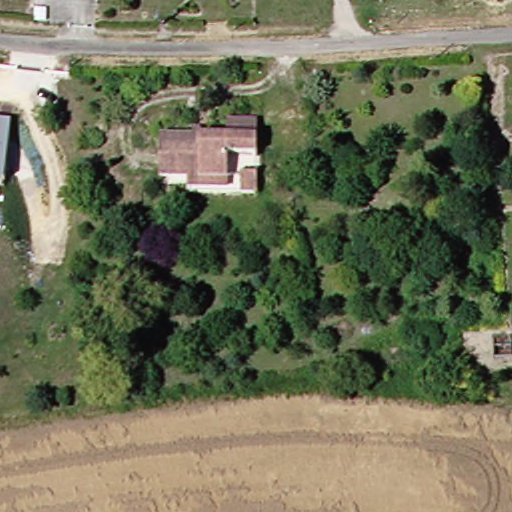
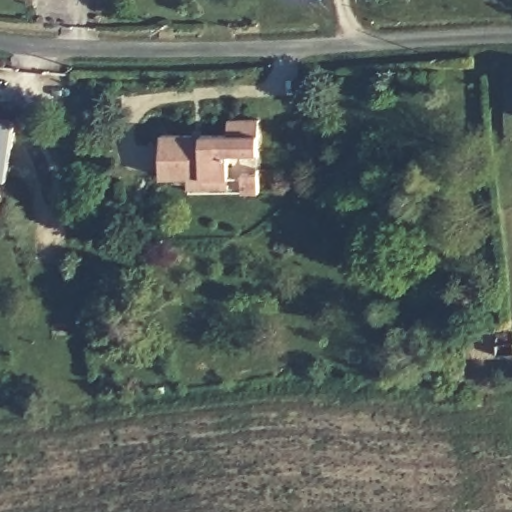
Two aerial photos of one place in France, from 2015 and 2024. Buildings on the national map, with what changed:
unchanged [(3,178),(0,178),(0,117),(9,117),(3,178)]
unchanged [(192,189),(192,179),(166,180),(162,138),(230,134),(229,122),(257,122),(260,156),(231,158),(232,176),(232,186),(192,189)]
unchanged [(245,168),(261,167),(263,188),(247,189),(245,168)]

